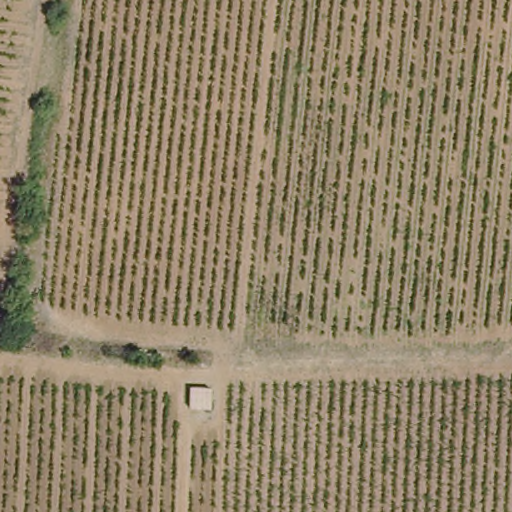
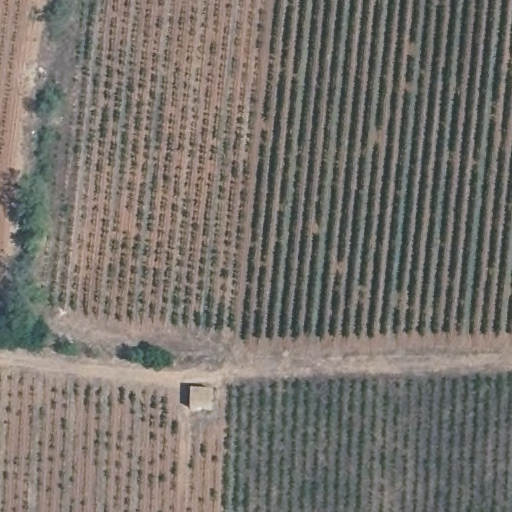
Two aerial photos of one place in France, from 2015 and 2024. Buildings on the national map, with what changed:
unchanged [(220,404),(200,404),(199,382),(220,382),(220,404)]

